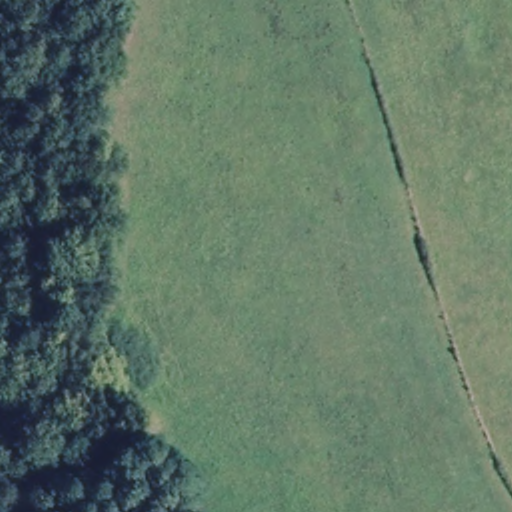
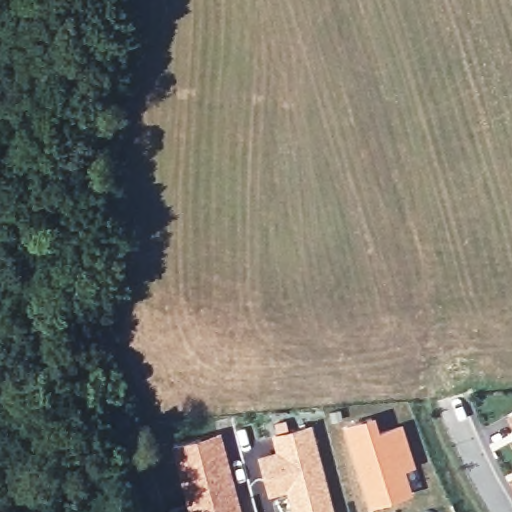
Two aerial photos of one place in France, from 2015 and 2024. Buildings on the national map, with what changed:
new [(373,414),(379,428),(401,422),(415,464),(404,468),(411,490),(367,504),(342,425),(373,414)]
new [(512,415),(512,424),(508,417),(512,415)]
new [(270,433),(273,433),(271,423),(285,419),(288,429),(311,424),(334,512),(291,512),(284,489),(267,493),(256,455),(274,450),(270,433)]
new [(240,501),(242,512),(185,512),(183,501),(169,445),(220,431),(240,501)]

